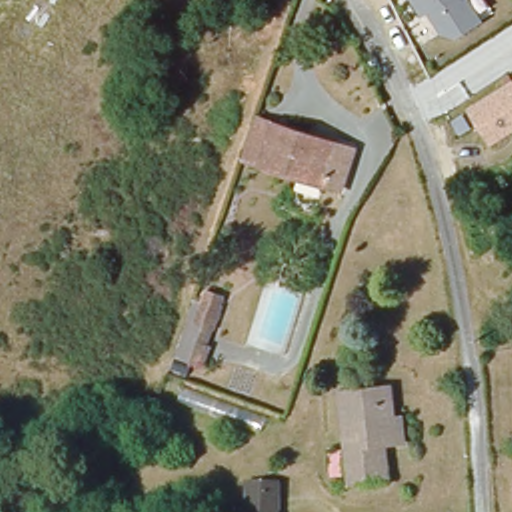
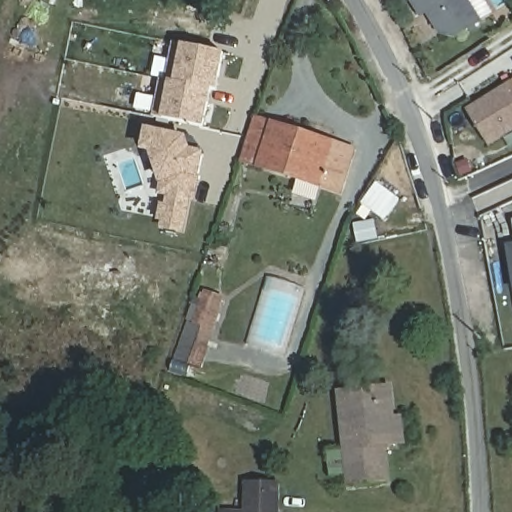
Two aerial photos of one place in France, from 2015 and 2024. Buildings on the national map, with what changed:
unchanged [(441,36),(430,15),(423,19),(411,0),(470,0),(483,23),(460,40),(441,36)]
new [(215,101),(210,100),(205,128),(161,117),(169,80),(174,81),(180,46),(225,53),(215,101)]
unchanged [(490,146),(468,110),(512,83),(512,133),(490,146)]
unchanged [(258,119),(354,150),(341,191),(245,160),(258,119)]
new [(150,152),(142,151),(146,128),(187,136),(194,137),(207,153),(205,153),(201,178),(196,201),(191,201),(185,235),(160,229),(162,221),(157,220),(160,203),(165,203),(166,196),(157,194),(160,184),(150,152)]
new [(378,239),(356,244),(354,223),(366,223),(356,215),(377,182),(400,200),(386,221),(379,217),(375,221),(378,239)]
new [(508,244),(512,243),(512,264),(508,244)]
unchanged [(199,366),(177,357),(190,322),(195,324),(207,293),(223,298),(207,342),(199,366)]
unchanged [(325,450),(345,448),(340,393),(391,387),(396,416),(406,415),(409,446),(390,450),(391,485),(348,492),(347,478),(330,480),(325,450)]
unchanged [(248,483),(280,484),(279,512),(247,512),(248,483)]

